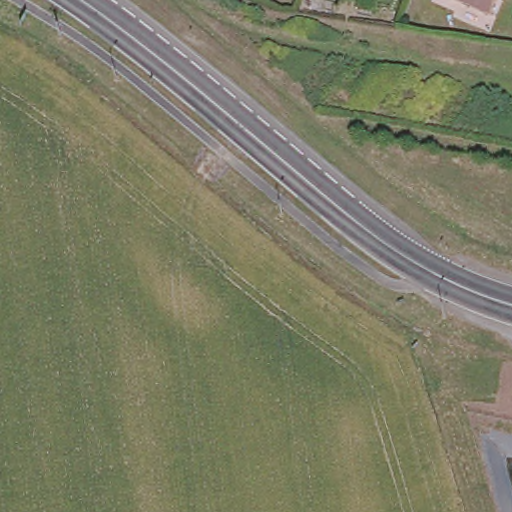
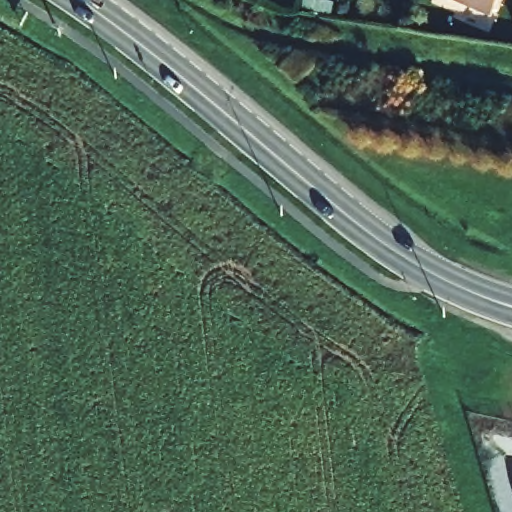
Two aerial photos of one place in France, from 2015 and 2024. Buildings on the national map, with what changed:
unchanged [(450,0),(502,0),(495,19),(450,0)]

